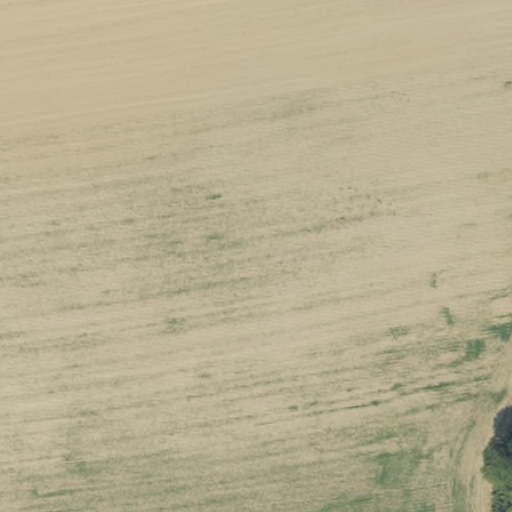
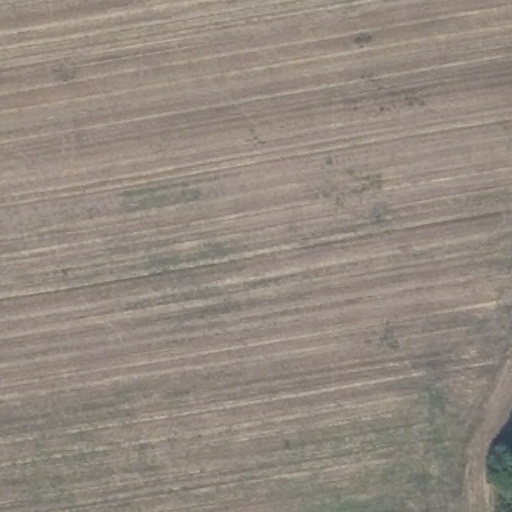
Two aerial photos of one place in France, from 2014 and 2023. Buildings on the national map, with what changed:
[]

